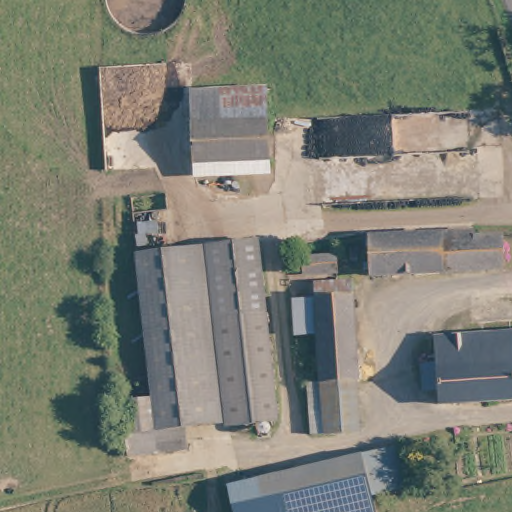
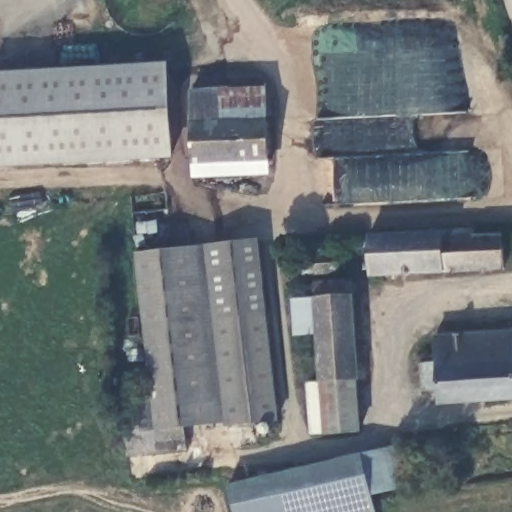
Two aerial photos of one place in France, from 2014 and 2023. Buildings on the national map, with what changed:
new [(175,157),(0,166),(0,72),(170,63),(175,157)]
unchanged [(266,89),(271,167),(189,171),(185,94),(266,89)]
unchanged [(453,234),(505,236),(511,265),(376,276),(371,233),(453,234)]
unchanged [(228,425),(226,417),(209,421),(179,426),(153,429),(148,401),(128,269),(125,254),(182,246),(252,238),(253,246),(277,417),(228,425)]
unchanged [(335,252),(335,270),(305,271),(305,253),(335,252)]
unchanged [(321,377),(319,340),(298,341),(295,300),(315,299),(315,281),(350,279),(352,298),(358,376),(321,377)]
unchanged [(420,358),(436,356),(435,331),(512,326),(512,395),(441,399),(439,385),(422,385),(420,358)]
unchanged [(308,390),(322,390),(321,377),(358,376),(361,427),(324,429),(311,429),(308,390)]
unchanged [(182,447),(129,456),(121,407),(148,401),(153,429),(179,426),(182,447)]
unchanged [(362,454),(397,446),(407,487),(371,495),(375,512),(235,512),(229,484),(362,454)]

